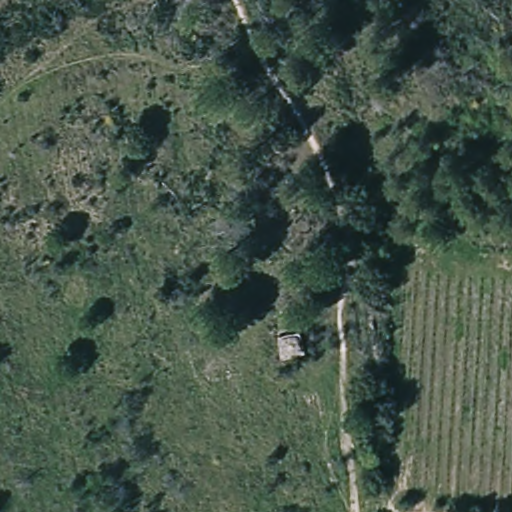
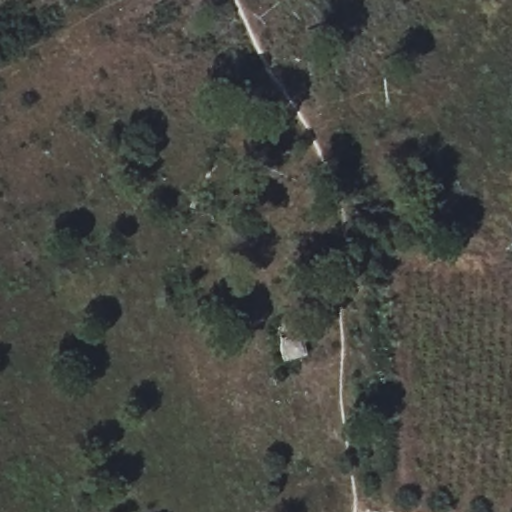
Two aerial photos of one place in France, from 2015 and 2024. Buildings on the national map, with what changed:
unchanged [(303,357),(277,361),(275,335),(298,329),(303,357)]

